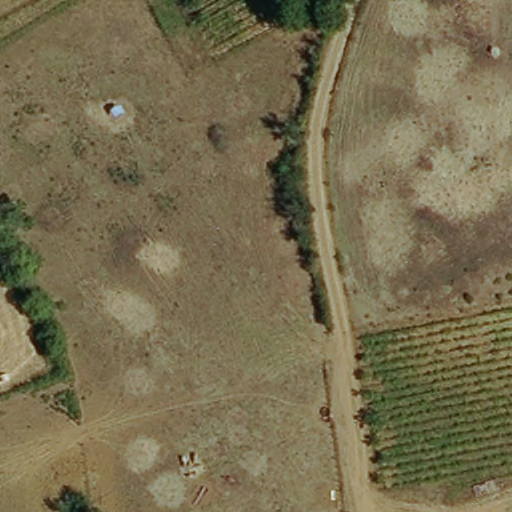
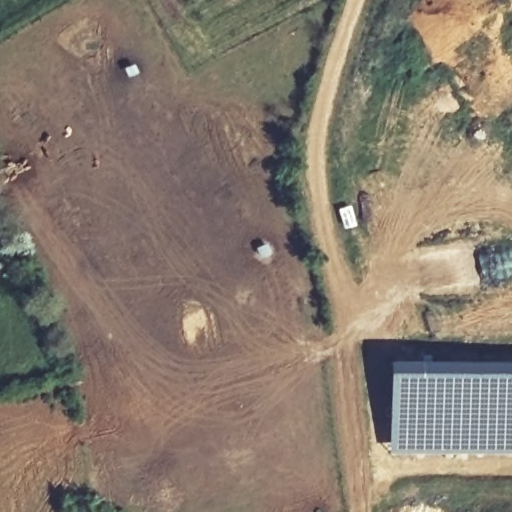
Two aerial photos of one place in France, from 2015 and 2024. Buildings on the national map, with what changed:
new [(447,364),(473,362),(474,369),(499,370),(499,366),(512,367),(512,455),(389,454),(387,362),(447,364)]

